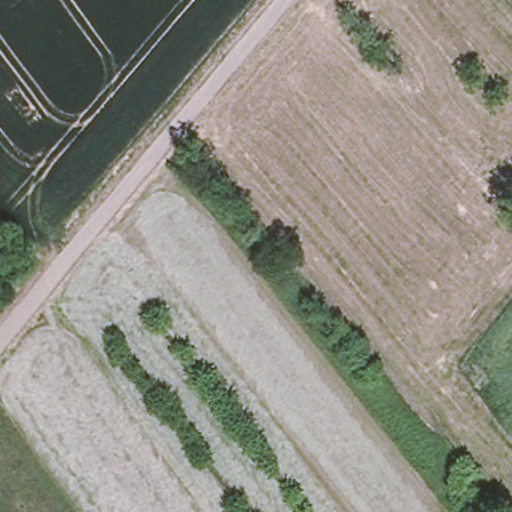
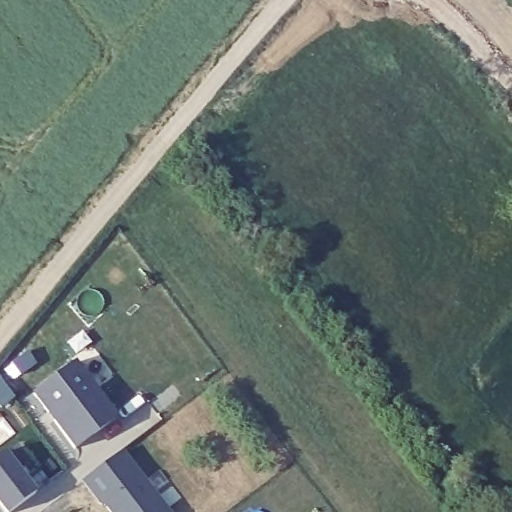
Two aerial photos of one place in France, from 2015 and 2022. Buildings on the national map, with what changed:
new [(30,350),(38,364),(23,374),(15,360),(30,350)]
new [(54,422),(57,419),(52,411),(48,414),(33,394),(72,364),(114,417),(74,448),(54,422)]
new [(18,400),(0,411),(0,380),(1,379),(18,400)]
new [(102,505),(82,480),(120,451),(166,512),(110,512),(103,504),(102,505)]
new [(4,452),(35,492),(10,512),(3,512),(0,508),(0,455),(4,452)]

